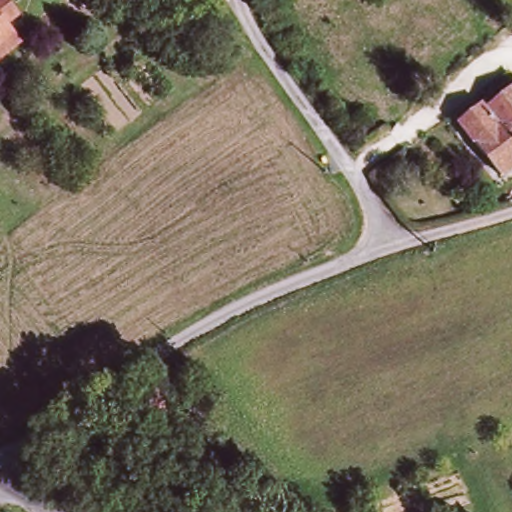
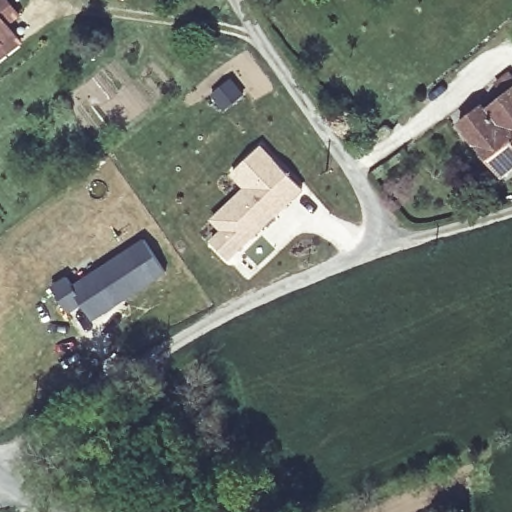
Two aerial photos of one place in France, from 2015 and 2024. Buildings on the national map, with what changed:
unchanged [(0,0),(10,0),(22,16),(11,25),(17,33),(23,40),(0,58),(0,0)]
unchanged [(502,183),(463,135),(486,116),(488,118),(505,106),(497,95),(512,84),(512,175),(502,183)]
unchanged [(357,121),(371,138),(357,148),(345,132),(357,121)]
new [(231,258),(214,241),(225,230),(214,219),(237,197),(247,187),(234,173),(262,146),(303,188),(275,215),(264,225),(231,258)]
new [(92,319),(82,303),(69,312),(52,287),(67,276),(73,285),(144,238),(165,270),(128,295),(119,301),(92,319)]

